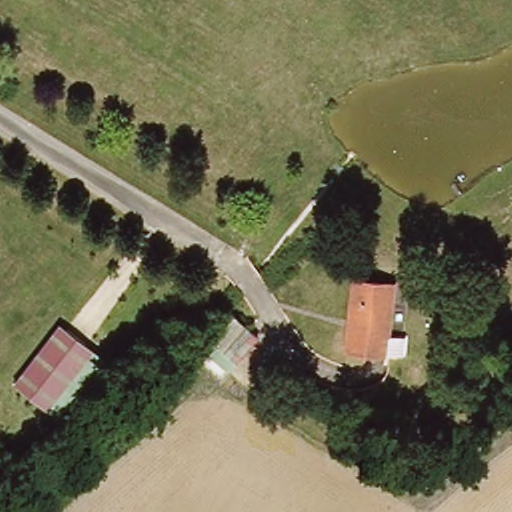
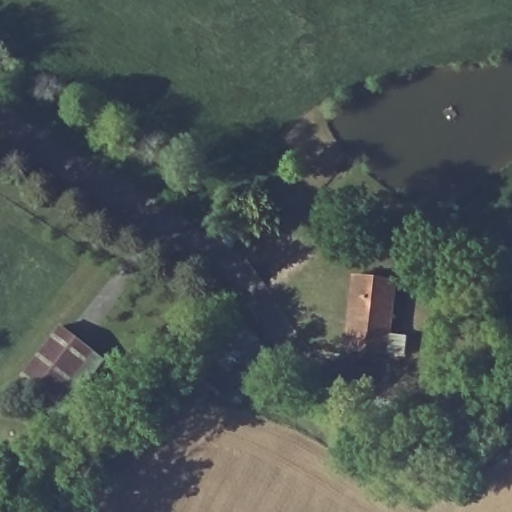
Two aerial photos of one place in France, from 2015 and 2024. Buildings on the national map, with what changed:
unchanged [(353,348),(361,279),(402,285),(394,353),(353,348)]
unchanged [(206,346),(235,319),(263,340),(228,370),(206,346)]
unchanged [(96,348),(49,408),(17,384),(65,322),(96,348)]

